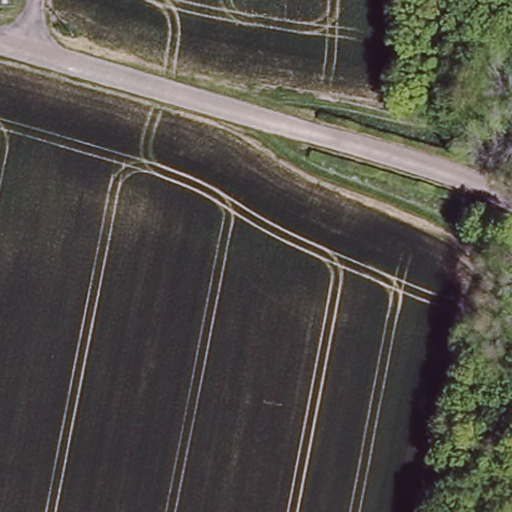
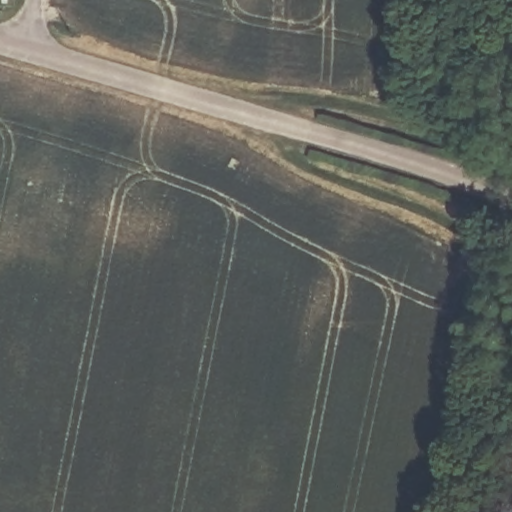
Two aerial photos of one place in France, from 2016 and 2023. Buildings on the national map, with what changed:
[]

